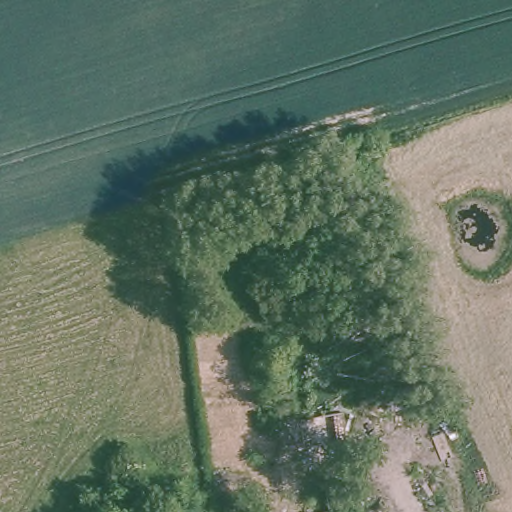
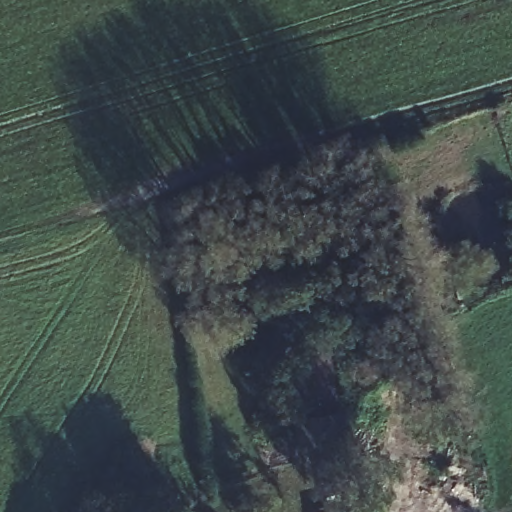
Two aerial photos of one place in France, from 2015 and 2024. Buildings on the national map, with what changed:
unchanged [(411,434),(405,419),(441,411),(446,426),(411,434)]
unchanged [(308,448),(303,420),(344,415),(348,442),(308,448)]
unchanged [(327,491),(339,490),(341,512),(329,512),(327,491)]

